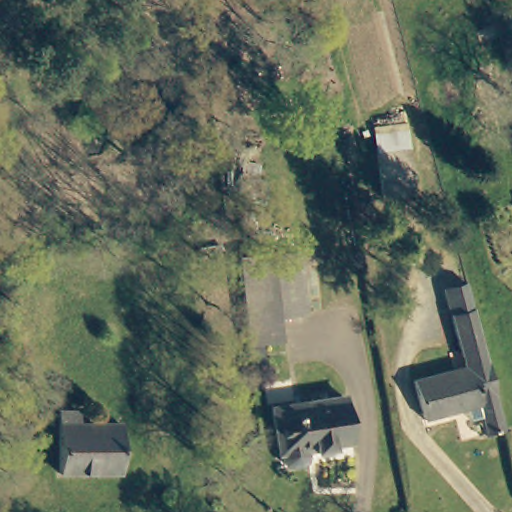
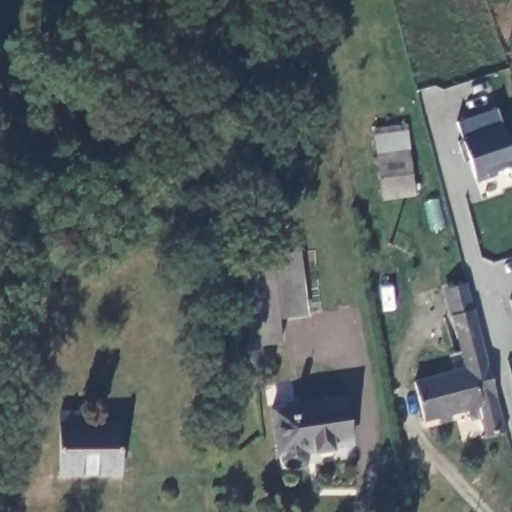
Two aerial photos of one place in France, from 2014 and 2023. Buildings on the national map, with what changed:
new [(454,121),(495,106),(512,155),(512,169),(475,180),(454,121)]
unchanged [(408,129),(416,172),(384,178),(376,134),(408,129)]
unchanged [(284,316),(287,339),(254,344),(242,260),(300,252),(310,312),(284,316)]
unchanged [(489,437),(481,408),(427,421),(418,383),(471,370),(456,316),(447,284),(468,280),(477,311),(508,433),(489,437)]
new [(512,300),(512,310),(509,300),(512,300)]
unchanged [(308,450),(307,455),(306,458),(302,461),(292,463),(289,462),(286,460),(283,457),(280,442),(278,443),(272,406),(342,393),(351,440),(336,443),(336,446),(315,451),(314,446),(307,447),(308,450)]
unchanged [(79,422),(119,422),(119,473),(59,473),(60,410),(79,410),(79,422)]

